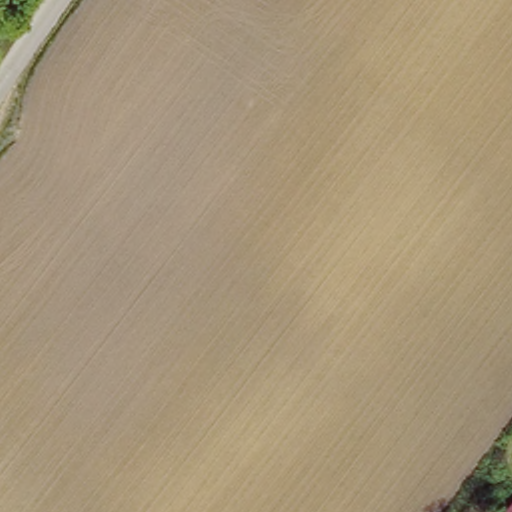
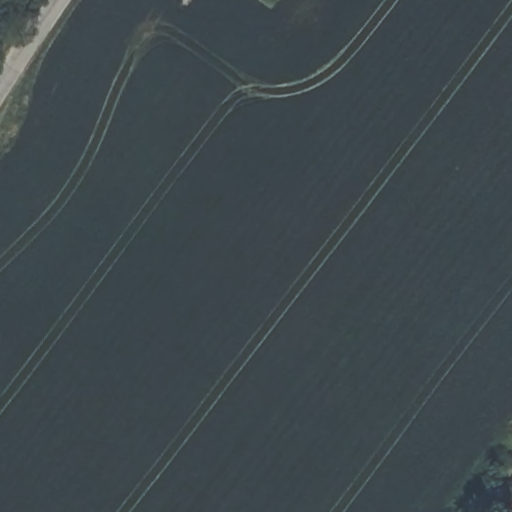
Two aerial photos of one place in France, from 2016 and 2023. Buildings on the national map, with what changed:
unchanged [(512,490),(512,510),(502,499),(512,490)]

